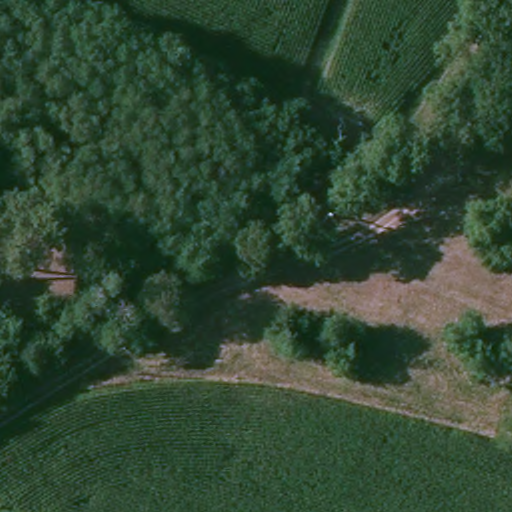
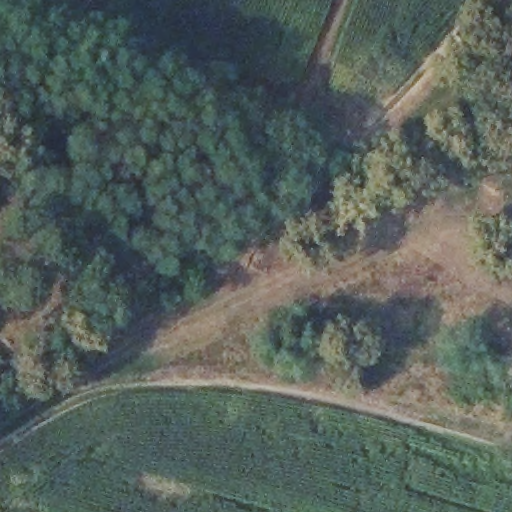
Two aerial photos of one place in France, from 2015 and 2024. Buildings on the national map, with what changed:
[]

